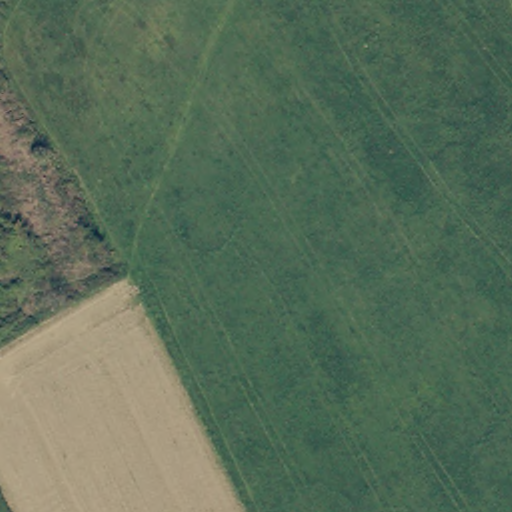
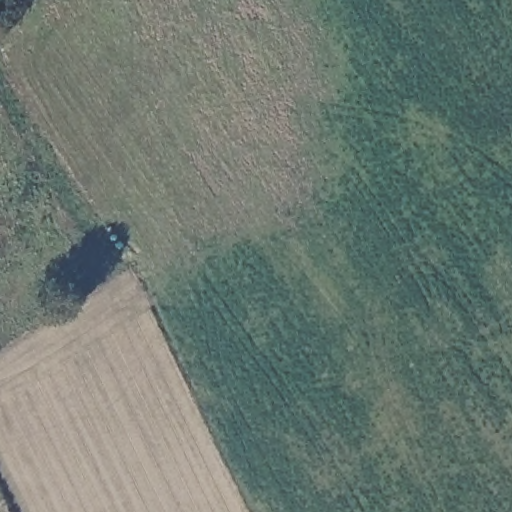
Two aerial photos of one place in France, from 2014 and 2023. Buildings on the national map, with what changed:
[]

